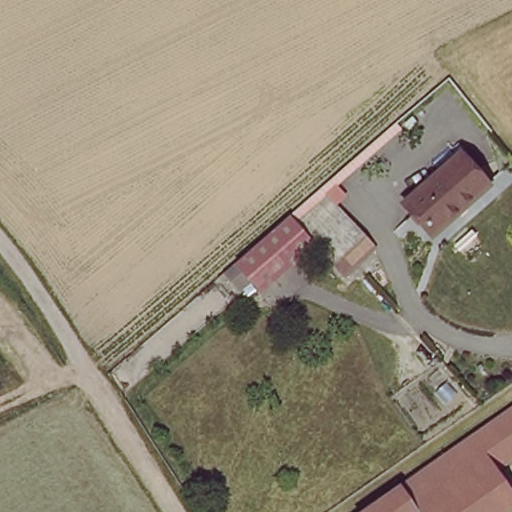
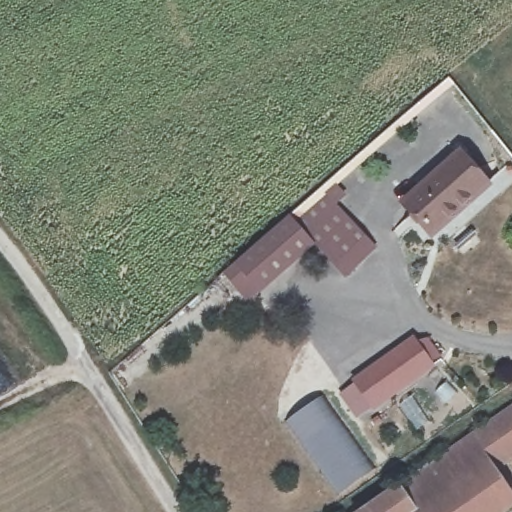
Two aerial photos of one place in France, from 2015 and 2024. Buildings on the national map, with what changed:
unchanged [(452,147),(481,179),(427,228),(398,197),(452,147)]
unchanged [(341,271),(296,218),(324,193),(375,245),(341,271)]
unchanged [(227,276),(238,267),(255,251),(291,218),(316,246),(264,294),(254,283),(243,293),(227,276)]
new [(413,335),(417,341),(429,337),(440,356),(431,363),(434,366),(373,411),(370,408),(356,418),(340,394),(354,383),(352,380),(413,335)]
new [(340,492),(289,419),(321,398),(371,470),(340,492)]
unchanged [(512,485),(512,492),(484,512),(358,512),(512,401),(512,444),(493,457),(512,485)]

